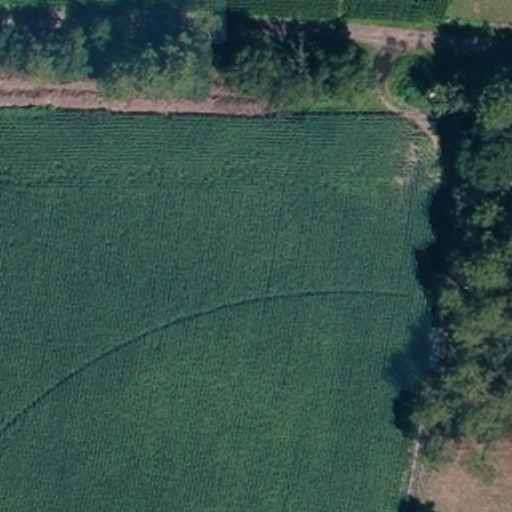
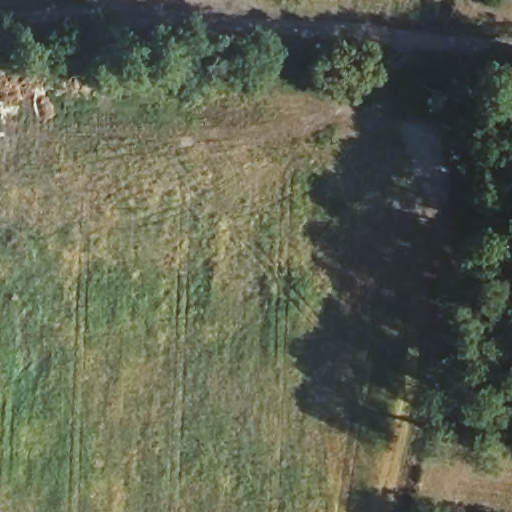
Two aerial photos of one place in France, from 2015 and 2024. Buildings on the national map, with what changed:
unchanged [(512,146),(512,175),(503,174),(512,146)]

